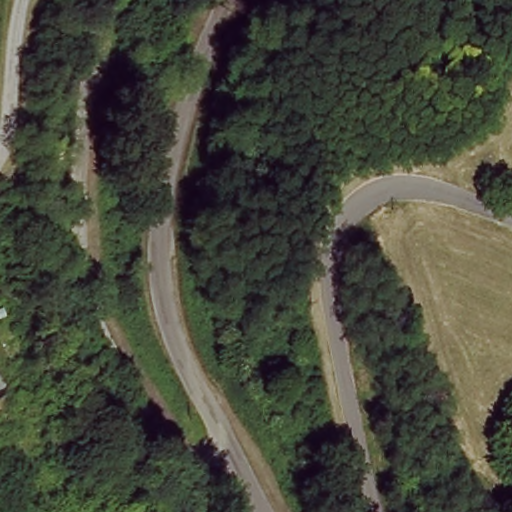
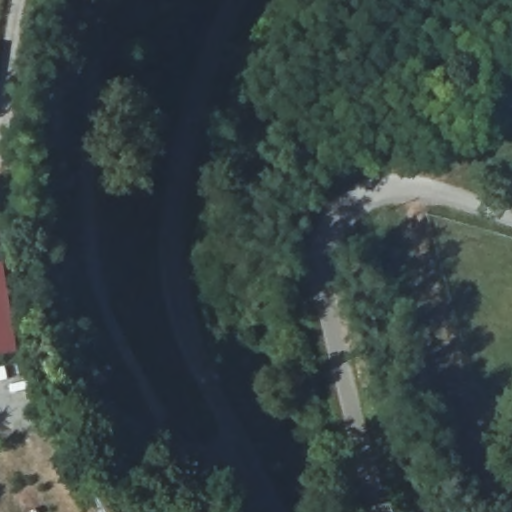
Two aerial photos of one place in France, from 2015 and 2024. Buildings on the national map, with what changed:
new [(18,354),(0,357),(0,265),(5,264),(18,354)]
demolished [(0,414),(0,389),(10,409),(0,414)]

